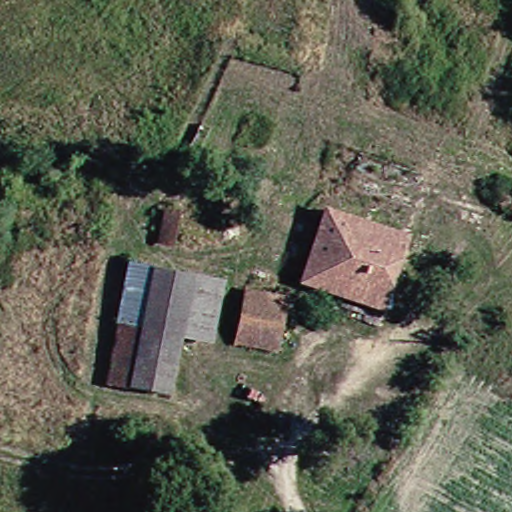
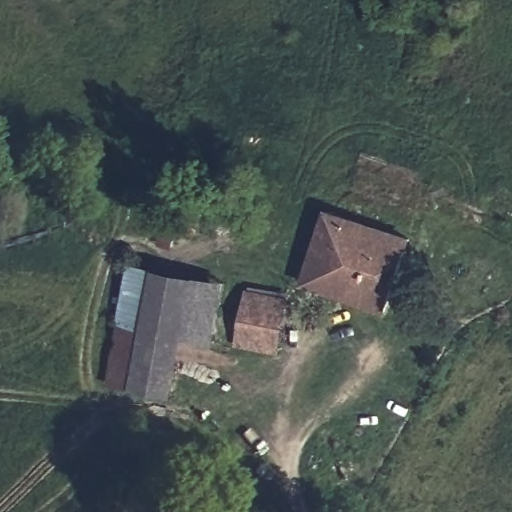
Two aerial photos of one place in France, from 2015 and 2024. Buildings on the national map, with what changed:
unchanged [(380,310),(298,282),(319,220),(402,246),(380,310)]
unchanged [(221,283),(208,348),(181,341),(168,397),(101,385),(121,265),(221,283)]
unchanged [(239,349),(241,297),(277,298),(275,353),(239,349)]

